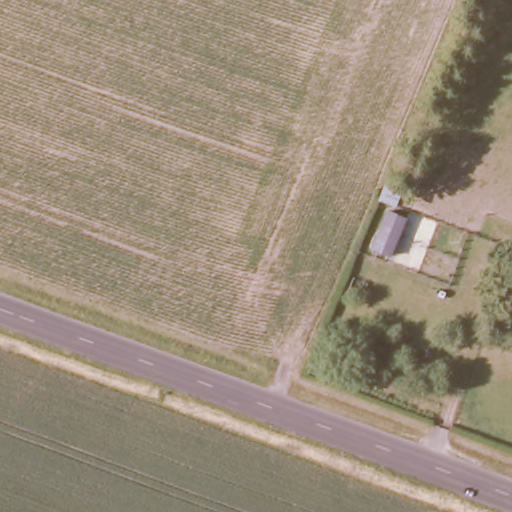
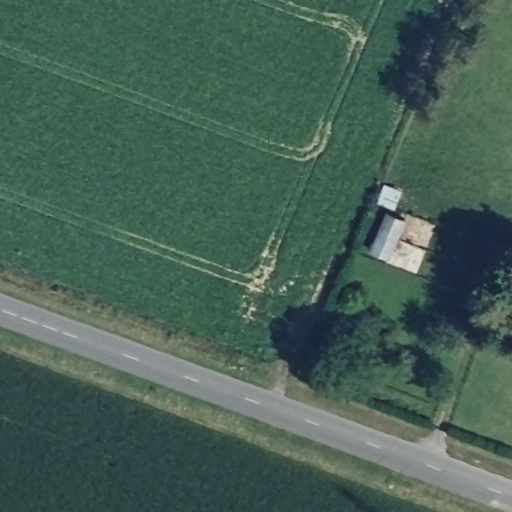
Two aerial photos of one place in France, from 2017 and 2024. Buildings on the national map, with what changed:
unchanged [(383,185),(398,191),(392,207),(377,201),(383,185)]
unchanged [(384,211),(401,218),(385,256),(369,250),(384,211)]

